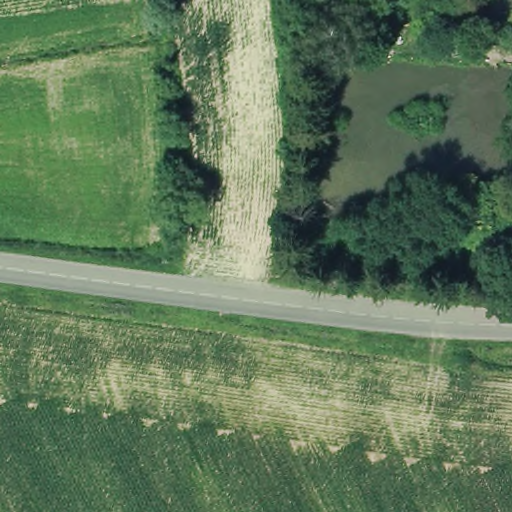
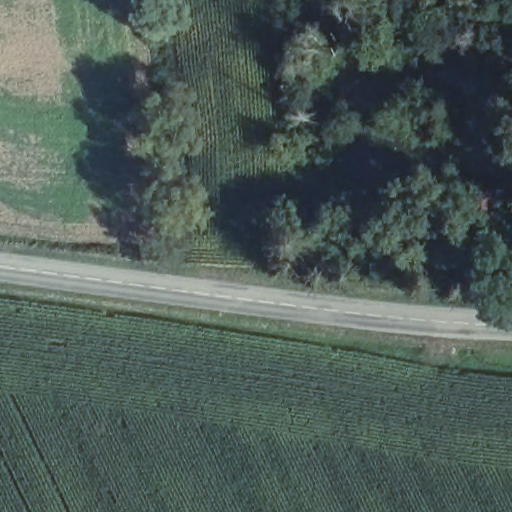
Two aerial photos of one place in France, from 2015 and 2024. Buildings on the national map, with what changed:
unchanged [(492,0),(512,0),(512,19),(490,18),(492,0)]

